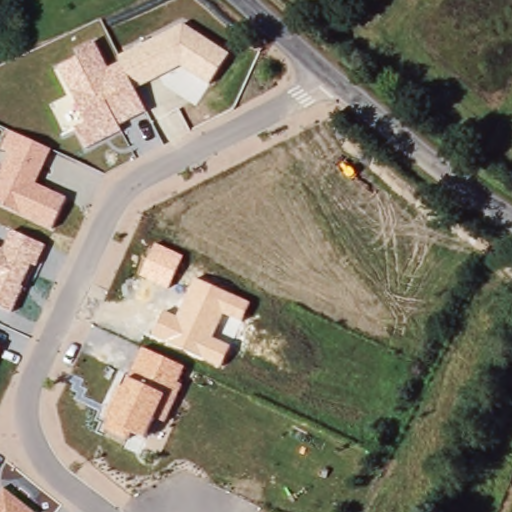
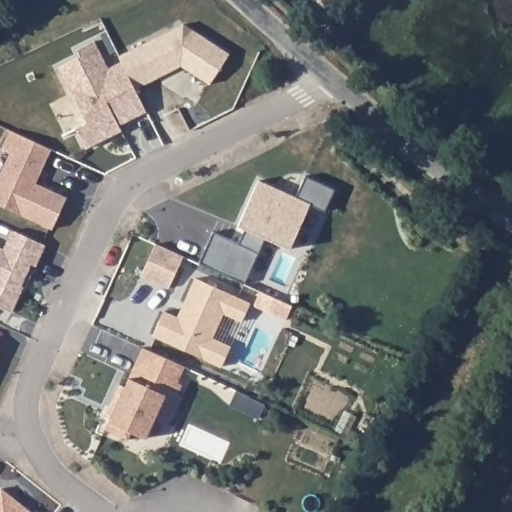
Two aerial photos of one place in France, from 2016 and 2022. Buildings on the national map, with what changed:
unchanged [(75,127),(86,122),(70,92),(58,67),(79,59),(75,51),(95,42),(108,68),(122,62),(120,56),(184,24),(229,54),(211,85),(181,67),(136,88),(148,110),(118,125),(121,131),(86,147),(75,127)]
unchanged [(0,204),(0,174),(10,153),(1,149),(10,131),(51,150),(37,183),(67,197),(53,229),(0,204)]
new [(214,231),(239,242),(245,229),(239,226),(259,180),(296,197),(306,176),(335,189),(325,212),(310,205),(290,249),(266,238),(245,283),(199,262),(214,231)]
unchanged [(0,308),(0,247),(4,249),(11,231),(46,246),(37,267),(32,266),(22,286),(25,287),(12,313),(0,308)]
unchanged [(140,276),(155,244),(183,257),(170,288),(140,276)]
unchanged [(162,311),(177,317),(194,278),(250,302),(243,322),(224,315),(214,338),(231,346),(221,367),(152,337),(162,311)]
unchanged [(110,418),(104,416),(116,386),(125,390),(130,378),(142,348),(185,367),(179,383),(183,385),(166,423),(155,419),(146,438),(131,432),(129,440),(106,430),(110,418)]
unchanged [(1,488),(30,512),(0,512),(0,489),(1,488)]

